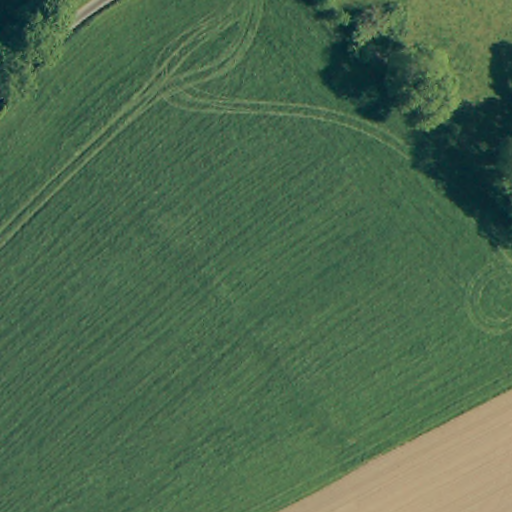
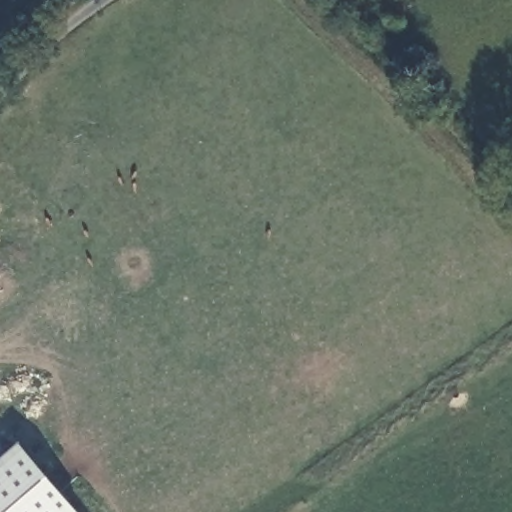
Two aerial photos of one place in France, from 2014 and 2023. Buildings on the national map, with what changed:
new [(19,440),(78,512),(0,512),(0,455),(19,440)]

